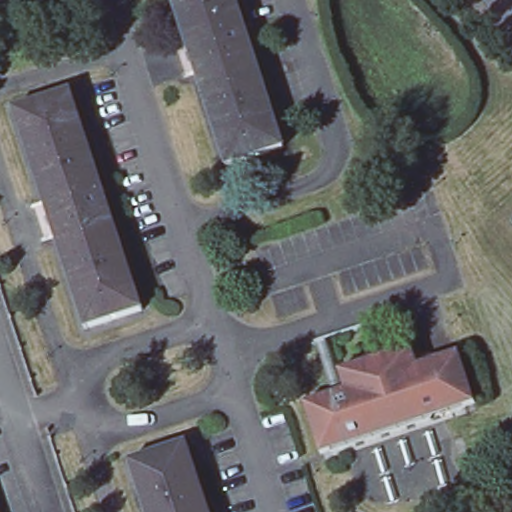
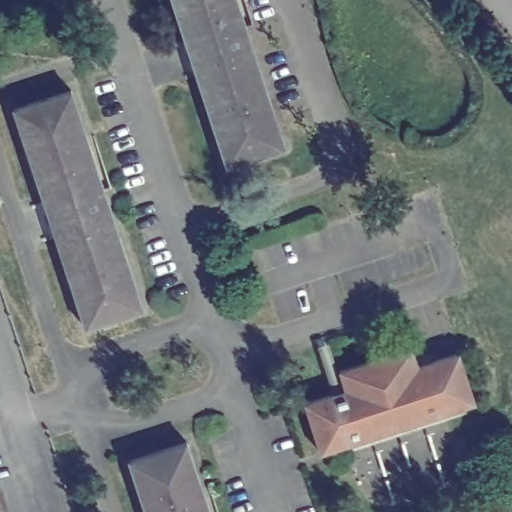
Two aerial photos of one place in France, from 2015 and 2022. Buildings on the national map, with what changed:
unchanged [(228,163),(174,0),(237,0),(285,144),(228,163)]
unchanged [(86,328),(15,109),(71,90),(143,309),(86,328)]
unchanged [(420,365),(463,352),(479,403),(325,454),(307,403),(335,394),(320,348),(335,343),(344,370),(415,347),(420,365)]
unchanged [(187,443),(210,512),(148,512),(131,462),(187,443)]

